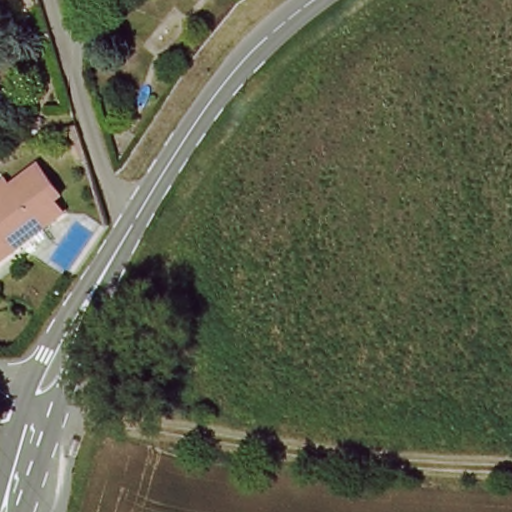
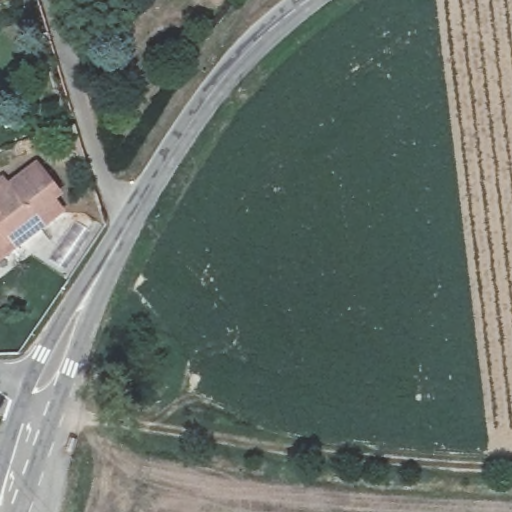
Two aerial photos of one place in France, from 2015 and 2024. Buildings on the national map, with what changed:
unchanged [(8,174),(15,180),(45,165),(69,213),(57,217),(65,229),(0,261),(0,178),(8,174)]
unchanged [(22,443),(27,420),(38,423),(35,443),(25,449),(22,443)]

